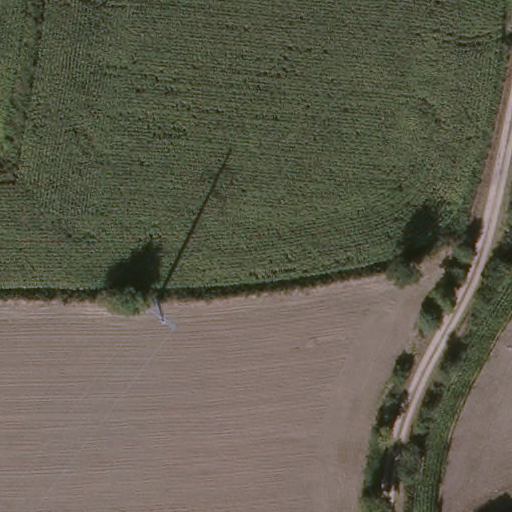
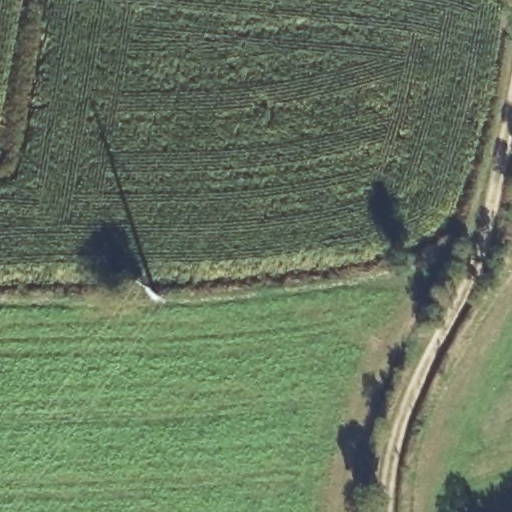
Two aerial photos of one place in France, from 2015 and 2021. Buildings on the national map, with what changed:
[]

